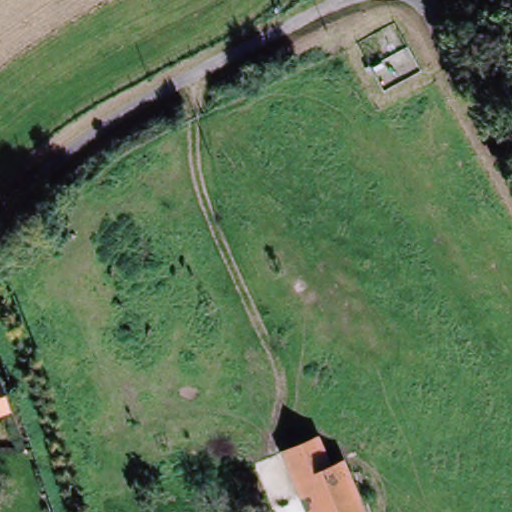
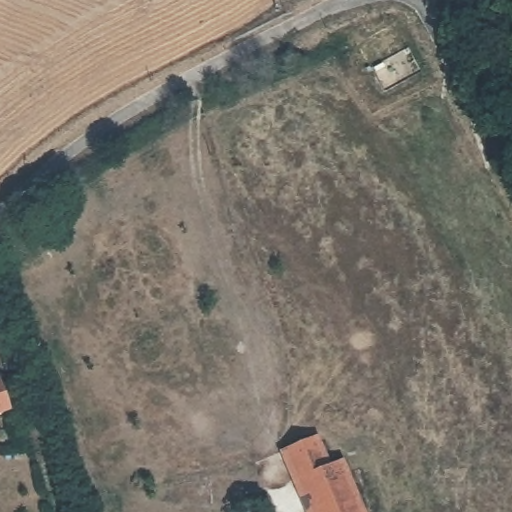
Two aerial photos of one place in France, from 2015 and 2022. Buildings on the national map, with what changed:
unchanged [(7,410),(0,413),(0,389),(7,410)]
unchanged [(283,455),(321,441),(333,469),(343,466),(363,512),(306,512),(283,455)]

